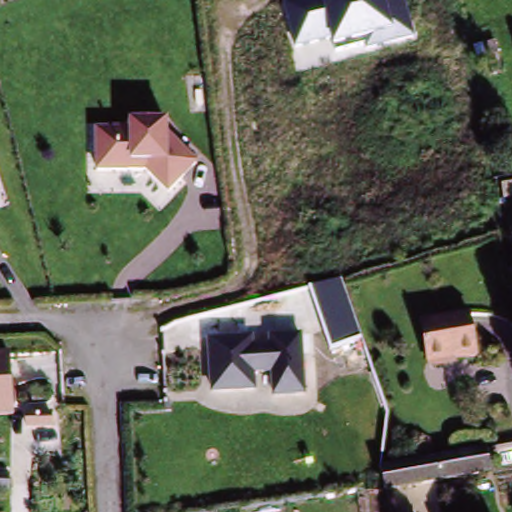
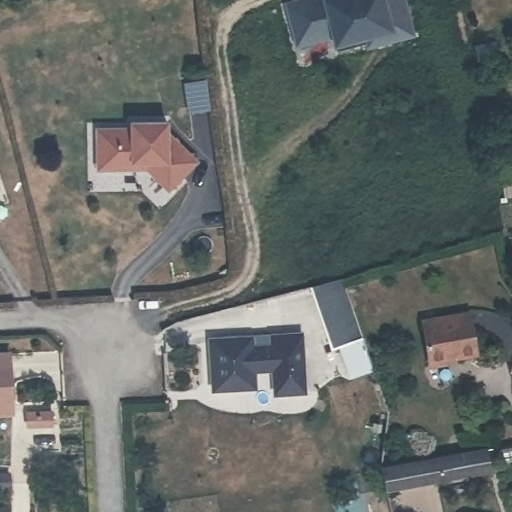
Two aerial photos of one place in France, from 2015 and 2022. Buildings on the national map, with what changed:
unchanged [(405,0),(415,35),(366,48),(365,41),(333,49),(330,38),(295,46),(285,1),(290,0),(405,0)]
unchanged [(155,170),(100,169),(101,125),(134,125),(134,118),(174,118),(174,130),(202,161),(174,190),(155,170)]
unchanged [(331,347),(310,286),(341,279),(361,335),(331,347)]
unchanged [(430,358),(425,318),(470,312),(476,351),(430,358)]
unchanged [(255,336),(255,345),(270,345),(270,334),(301,332),(305,395),(271,395),(270,374),(256,375),(257,390),(209,392),(206,338),(255,336)]
unchanged [(12,352),(15,416),(0,417),(0,353),(12,352)]
unchanged [(386,492),(382,468),(484,447),(488,475),(386,492)]

